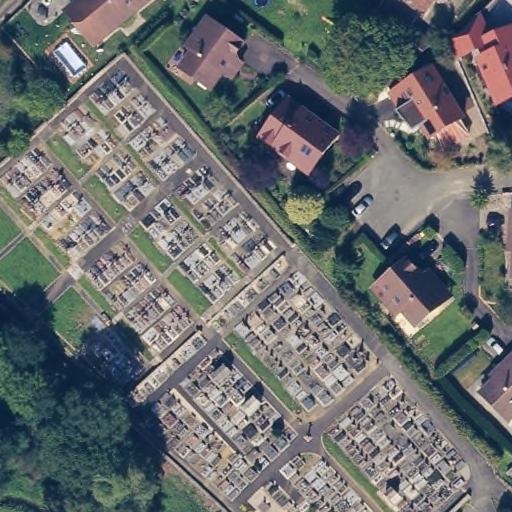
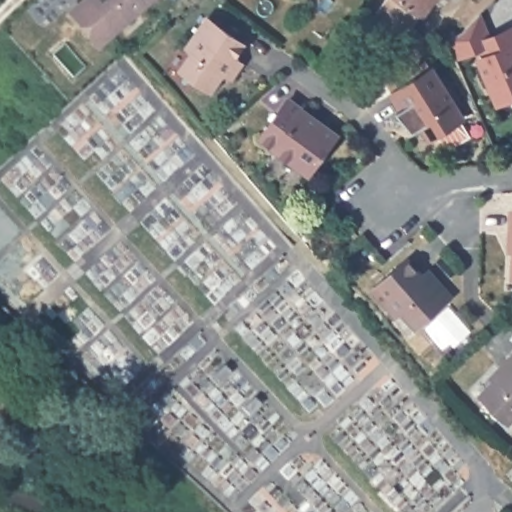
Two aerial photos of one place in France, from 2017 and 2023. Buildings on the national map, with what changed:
unchanged [(110,26),(93,41),(66,10),(77,0),(143,0),(111,26),(110,26)]
unchanged [(421,7),(410,21),(433,38),(409,56),(398,49),(406,37),(372,13),(381,0),(430,0),(423,9),(421,7)]
unchanged [(215,85),(186,65),(198,46),(192,43),(211,16),(247,40),(215,85)]
unchanged [(495,96),(479,58),(486,55),(480,41),(512,27),(512,96),(497,102),(495,96)]
unchanged [(432,62),(465,111),(460,114),(470,130),(445,146),(435,131),(431,134),(423,121),(418,124),(405,104),(401,106),(390,90),(432,62)]
unchanged [(337,136),(310,176),(260,139),(288,100),(337,136)]
unchanged [(403,302),(398,308),(375,282),(408,252),(425,271),(431,265),(452,289),(446,294),(418,319),(403,302)]
unchanged [(478,384),(500,362),(496,357),(512,340),(512,407),(506,413),(478,384)]

